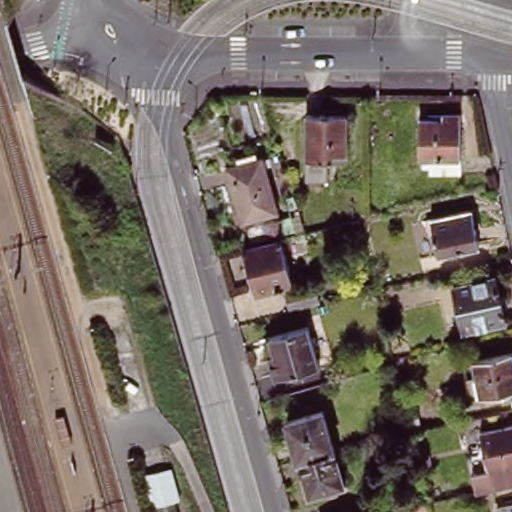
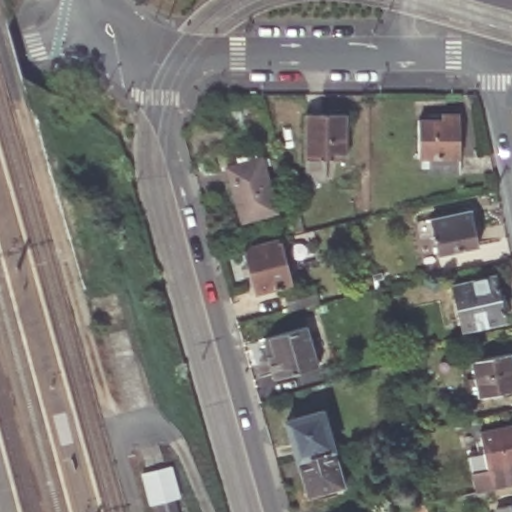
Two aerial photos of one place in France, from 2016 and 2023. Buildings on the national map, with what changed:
unchanged [(443,113),(444,108),(461,108),(462,165),(432,166),(432,152),(421,152),(420,114),(443,113)]
unchanged [(346,118),(346,162),(328,162),(327,185),(306,185),(306,118),(346,118)]
unchanged [(261,160),(278,214),(243,225),(226,170),(261,160)]
unchanged [(472,210),(479,245),(439,253),(432,218),(472,210)]
unchanged [(283,223),(286,236),(271,241),(267,227),(283,223)]
unchanged [(281,244),(294,286),(256,296),(243,254),(281,244)]
unchanged [(494,280),(504,325),(464,334),(454,288),(494,280)]
unchanged [(313,326),(322,366),(278,377),(268,338),(313,326)]
unchanged [(511,352),(512,359),(512,390),(479,396),(472,360),(511,352)]
unchanged [(414,403),(419,427),(409,429),(404,405),(414,403)]
unchanged [(512,409),(512,450),(489,454),(484,437),(480,416),(512,409)]
unchanged [(321,415),(331,454),(294,463),(284,425),(321,415)]
unchanged [(489,454),(512,450),(512,470),(474,477),(467,441),(484,437),(489,454)]
unchanged [(427,452),(431,467),(419,471),(416,455),(427,452)]
unchanged [(331,454),(341,491),(304,500),(294,463),(331,454)]
unchanged [(155,509),(153,503),(148,504),(139,472),(172,463),(181,495),(176,497),(178,502),(155,509)]
unchanged [(416,512),(414,504),(427,501),(429,512),(416,512)]
unchanged [(181,512),(156,512),(155,509),(178,502),(181,512)]
unchanged [(499,512),(512,509),(512,512),(499,512)]

